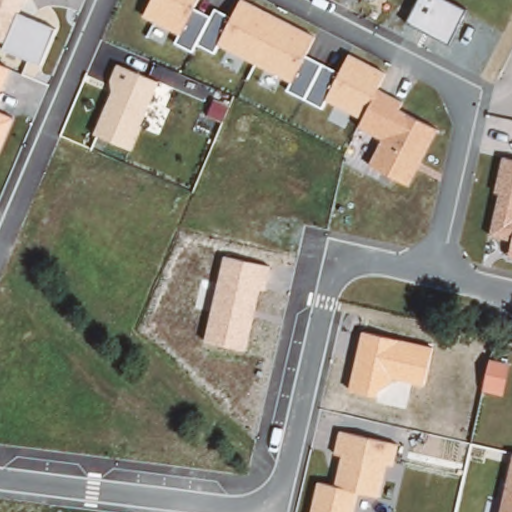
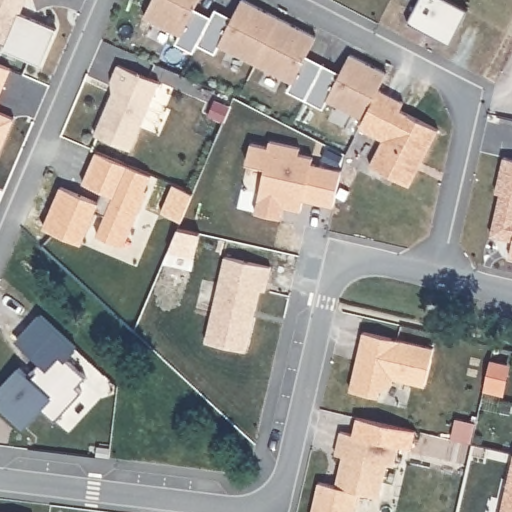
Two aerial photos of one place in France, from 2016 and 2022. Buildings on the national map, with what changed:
unchanged [(6,41),(0,39),(0,0),(25,0),(19,15),(54,29),(39,65),(3,50),(6,41)]
unchanged [(326,100),(322,108),(287,90),(291,81),(218,45),(213,53),(197,44),(192,51),(175,42),(179,34),(145,15),(153,0),(198,0),(193,9),(211,17),(215,10),(234,17),(241,0),(245,0),(316,37),(306,55),(342,72),(350,54),(386,72),(379,86),(362,119),(326,100)]
unchanged [(409,20),(419,0),(451,0),(467,9),(450,41),(409,20)]
unchanged [(95,133),(112,91),(110,80),(116,65),(159,83),(130,149),(95,133)]
unchanged [(9,70),(0,94),(0,66),(9,70)]
unchanged [(411,185),(370,165),(384,139),(358,125),(379,86),(405,100),(402,109),(440,129),(411,185)]
unchanged [(14,119),(0,150),(0,112),(14,119)]
new [(267,146),(269,141),(299,147),(298,153),(311,155),(309,162),(338,169),(332,206),(302,198),(299,210),(282,207),(280,218),(254,214),(264,167),(246,164),(250,142),(267,146)]
new [(97,235),(106,214),(95,209),(81,245),(41,228),(58,187),(97,202),(102,191),(82,183),(95,154),(149,175),(143,190),(147,190),(123,246),(97,235)]
unchanged [(511,240),(491,237),(499,194),(495,192),(502,156),(512,158),(512,259),(508,258),(511,240)]
unchanged [(205,340),(223,256),(270,266),(264,292),(259,290),(246,351),(205,340)]
new [(17,366),(27,376),(41,363),(15,340),(39,314),(76,347),(66,360),(83,376),(75,386),(80,391),(54,420),(42,407),(24,428),(0,407),(0,399),(1,397),(0,396),(0,385),(17,366)]
unchanged [(350,390),(362,333),(432,347),(424,385),(395,377),(379,390),(378,397),(350,390)]
unchanged [(318,483),(335,486),(342,455),(334,453),(339,432),(398,445),(393,467),(385,464),(378,497),(358,493),(354,512),(311,512),(318,483)]
unchanged [(512,462),(512,512),(503,512),(512,462)]

